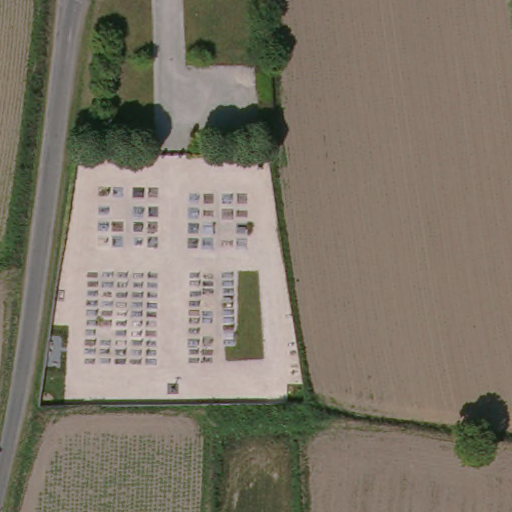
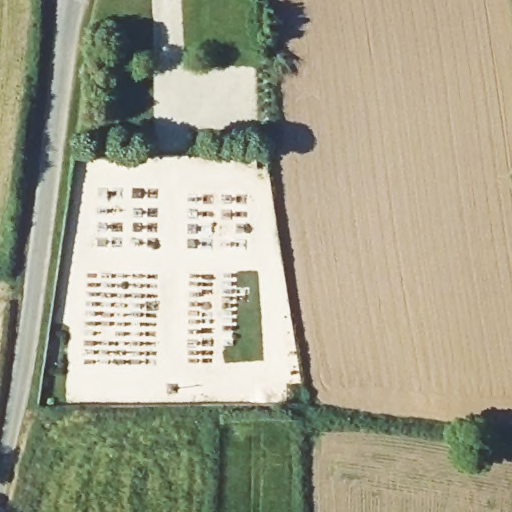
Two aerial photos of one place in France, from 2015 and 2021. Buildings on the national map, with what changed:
unchanged [(286,173),(271,173),(268,173),(268,152),(285,153),(286,173)]

